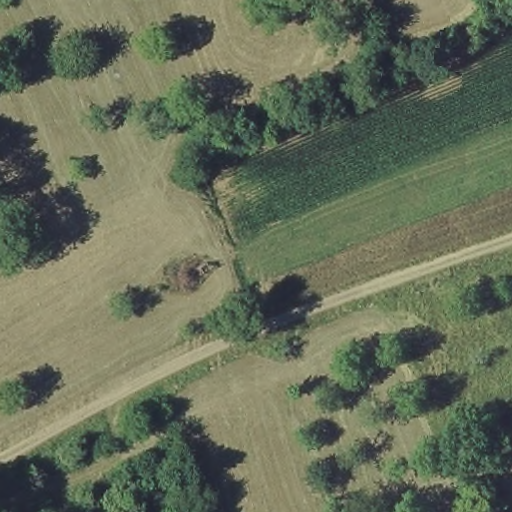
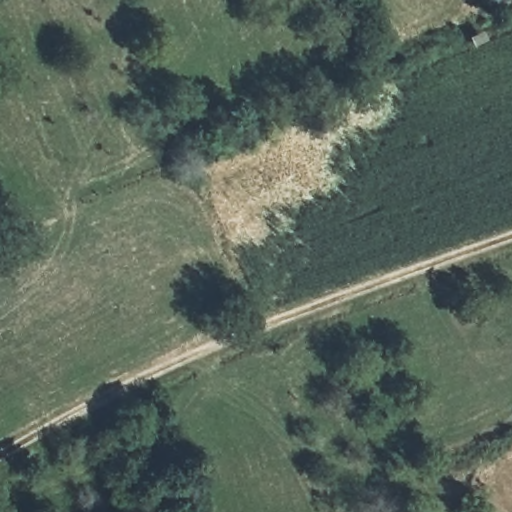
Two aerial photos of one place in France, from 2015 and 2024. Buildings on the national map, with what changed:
unchanged [(154,512),(138,512),(152,507),(154,512)]

